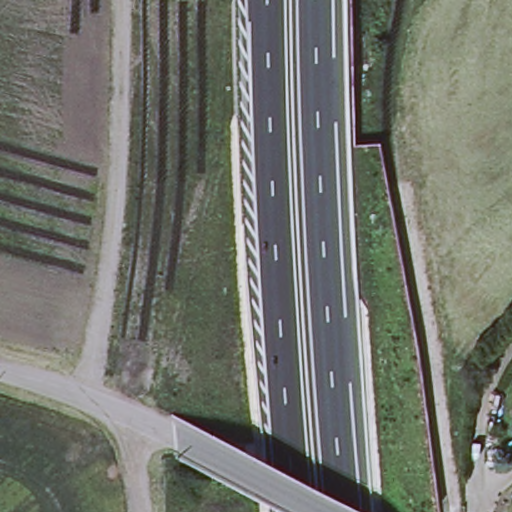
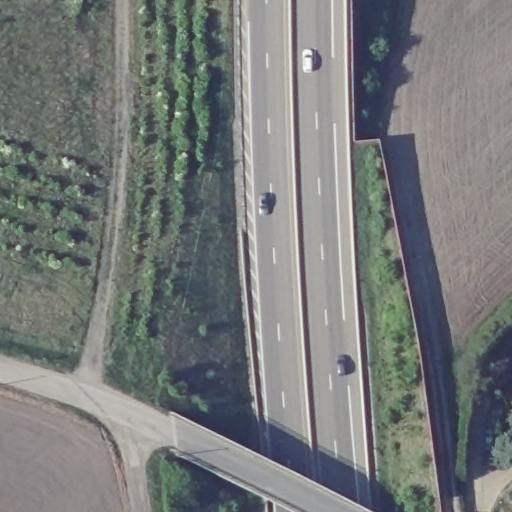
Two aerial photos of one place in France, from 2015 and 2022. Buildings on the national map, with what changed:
[]

